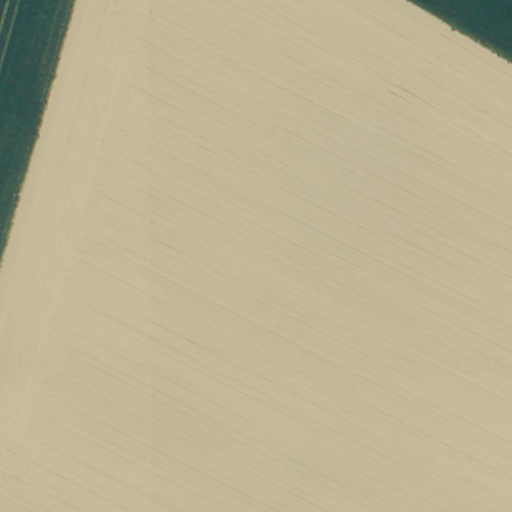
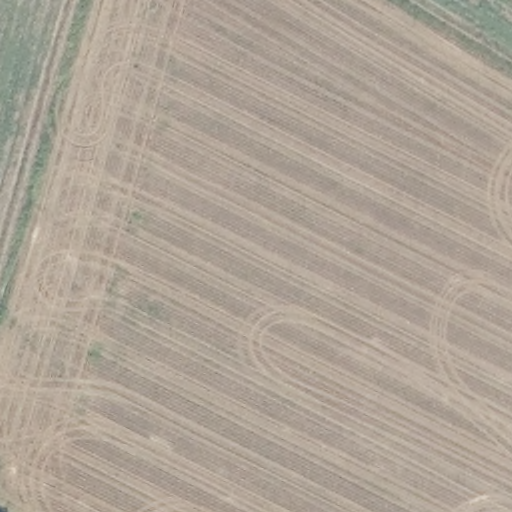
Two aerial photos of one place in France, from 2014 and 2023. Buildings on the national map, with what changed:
[]

